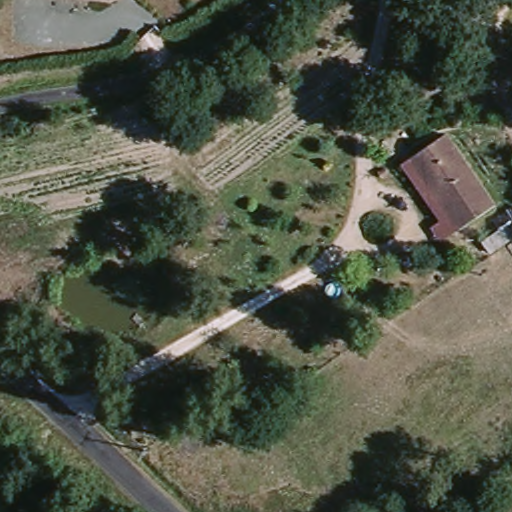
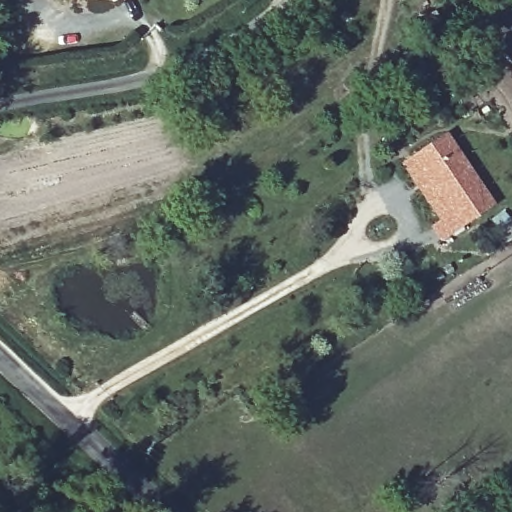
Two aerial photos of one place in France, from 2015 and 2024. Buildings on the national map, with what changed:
unchanged [(407,157),(445,133),(493,206),(456,230),(407,157)]

